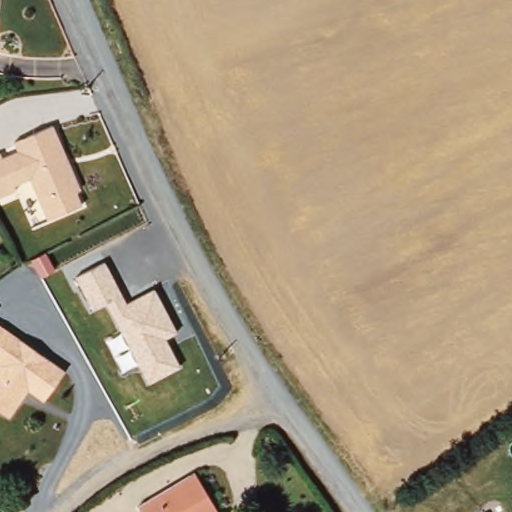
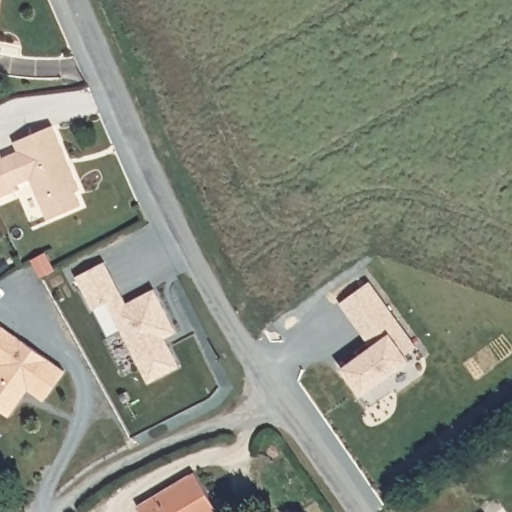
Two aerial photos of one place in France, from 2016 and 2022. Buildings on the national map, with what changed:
unchanged [(13,138),(11,135),(49,116),(85,181),(79,184),(87,199),(55,216),(32,174),(16,182),(18,186),(0,195),(0,145),(13,138)]
unchanged [(107,303),(93,311),(77,277),(107,262),(126,302),(156,288),(177,333),(167,340),(180,368),(147,385),(107,303)]
new [(366,340),(355,324),(339,302),(369,282),(384,303),(395,318),(416,347),(404,355),(409,361),(360,396),(340,368),(371,347),(366,340)]
unchanged [(71,372),(52,400),(36,389),(19,414),(0,400),(0,376),(6,366),(0,362),(0,322),(71,372)]
unchanged [(157,433),(131,445),(116,418),(142,405),(157,433)]
unchanged [(213,512),(142,512),(135,502),(192,467),(217,510),(213,512)]
unchanged [(0,512),(0,510),(2,512),(0,512)]

